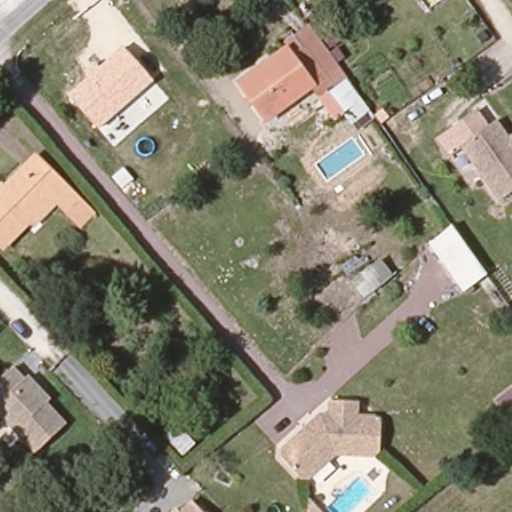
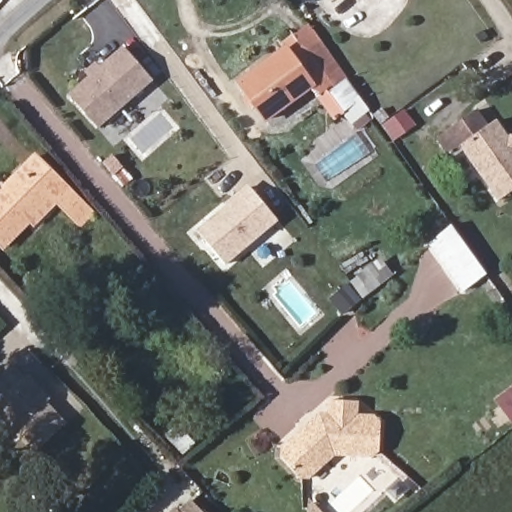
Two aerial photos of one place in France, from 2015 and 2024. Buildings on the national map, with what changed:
unchanged [(324,83),(314,91),(308,82),(268,112),(240,77),(284,43),(292,53),(306,41),(316,32),(342,68),(359,91),(339,105),(324,83)]
unchanged [(100,127),(71,94),(123,46),(153,84),(100,127)]
unchanged [(512,141),(512,190),(501,198),(462,144),(496,119),(512,141)]
unchanged [(28,223),(0,249),(0,191),(31,159),(74,200),(60,213),(52,205),(32,225),(28,223)]
new [(250,186),(278,219),(225,263),(197,230),(250,186)]
unchanged [(463,290),(429,242),(452,224),(487,272),(463,290)]
new [(394,273),(343,316),(330,300),(380,257),(394,273)]
unchanged [(4,382),(15,372),(27,385),(30,381),(52,405),(48,408),(68,429),(58,437),(38,455),(0,414),(0,386),(4,382)]
unchanged [(512,393),(512,423),(496,404),(512,393)]
unchanged [(364,417),(376,417),(385,424),(383,451),(377,457),(342,454),(316,475),(304,478),(287,458),(286,448),(325,415),(336,416),(337,403),(365,403),(364,417)]
unchanged [(201,512),(187,512),(195,505),(201,512)]

